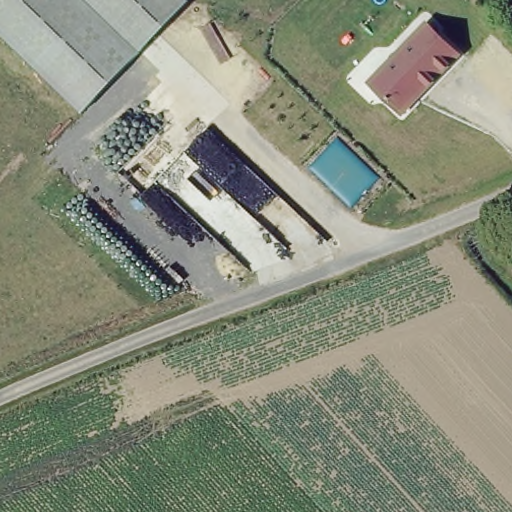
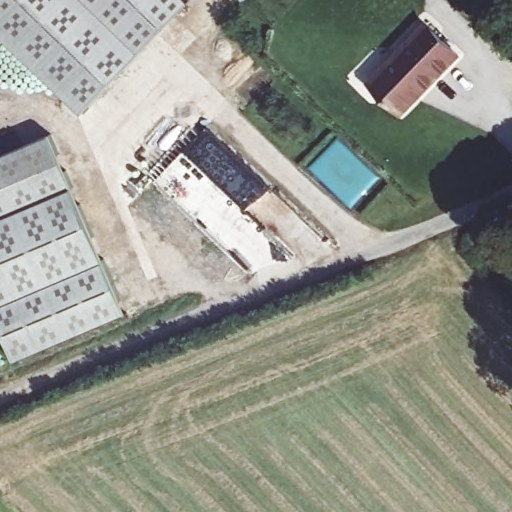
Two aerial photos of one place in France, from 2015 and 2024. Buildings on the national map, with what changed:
unchanged [(83,112),(0,32),(0,0),(190,0),(83,112)]
unchanged [(426,21),(463,54),(402,115),(366,81),(426,21)]
new [(125,311),(15,358),(0,323),(0,153),(48,132),(125,311)]

